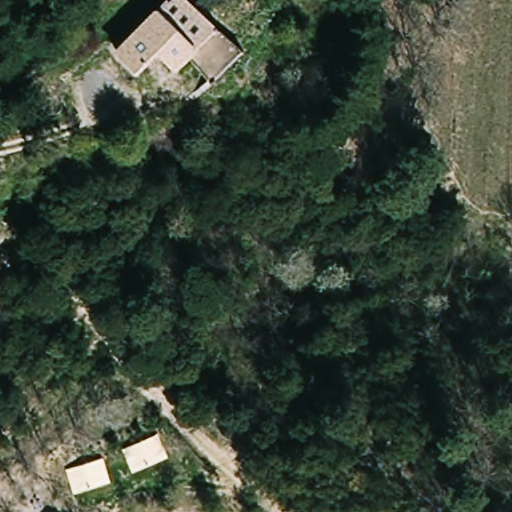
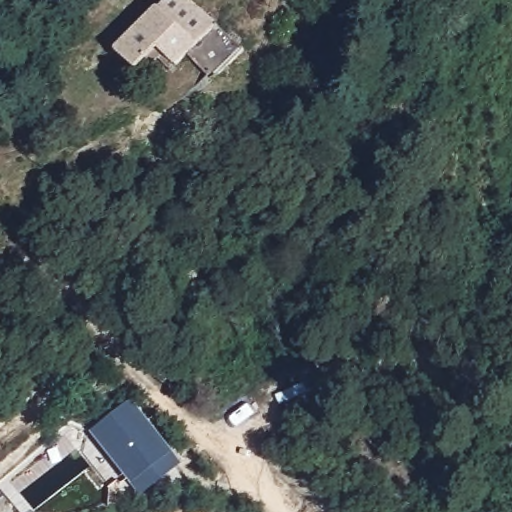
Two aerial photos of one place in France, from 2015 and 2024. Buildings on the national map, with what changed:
unchanged [(213,77),(190,53),(178,64),(167,52),(146,70),(122,45),(171,0),(196,0),(244,49),(213,77)]
new [(131,400),(173,453),(182,466),(142,497),(132,485),(90,432),(131,400)]

